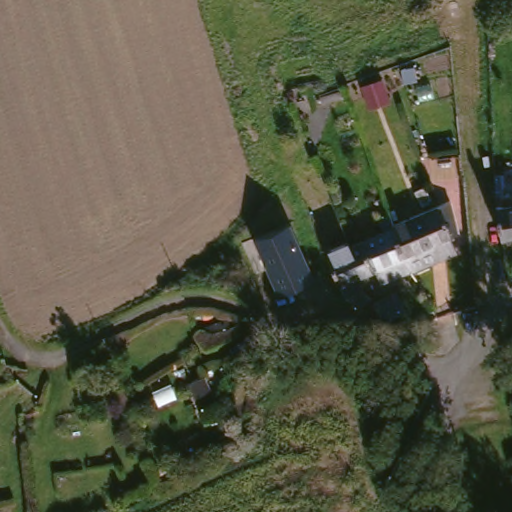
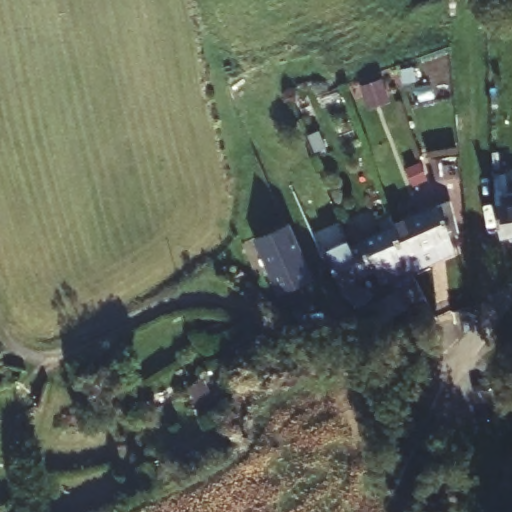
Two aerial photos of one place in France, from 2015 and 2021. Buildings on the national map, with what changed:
unchanged [(510,201),(508,188),(512,187),(512,232),(510,232),(503,202),(505,202),(510,201)]
unchanged [(401,224),(437,204),(440,202),(457,232),(448,237),(456,250),(421,270),(407,260),(391,231),(401,224)]
unchanged [(281,295),(254,240),(290,223),(315,278),(281,295)]
unchanged [(382,275),(363,287),(379,302),(375,307),(372,311),(360,303),(347,284),(337,262),(360,249),(367,245),(390,231),(391,231),(407,260),(421,270),(407,277),(406,276),(393,283),(388,286),(382,275)]
unchanged [(395,298),(403,292),(414,307),(397,318),(380,308),(395,298)]
unchanged [(206,382),(202,370),(219,365),(232,396),(220,401),(222,412),(206,417),(193,385),(206,382)]

